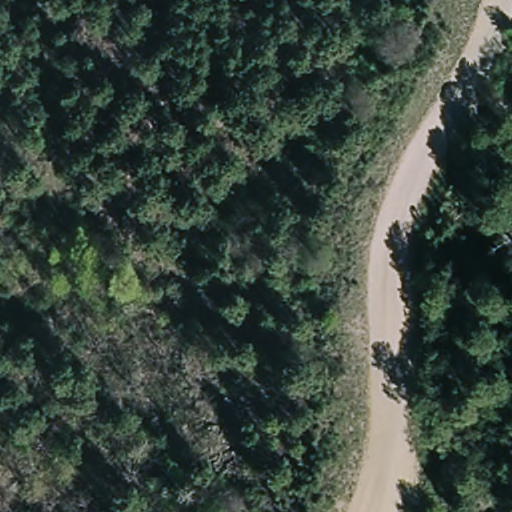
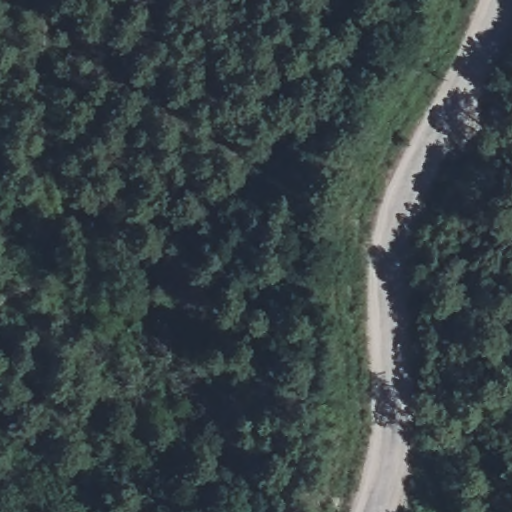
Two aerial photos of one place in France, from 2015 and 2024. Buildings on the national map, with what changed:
[]

